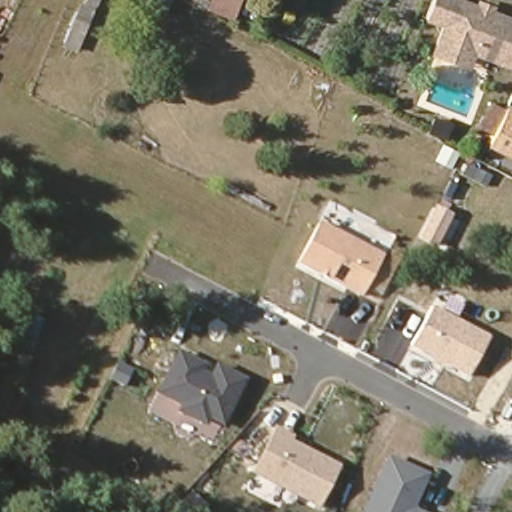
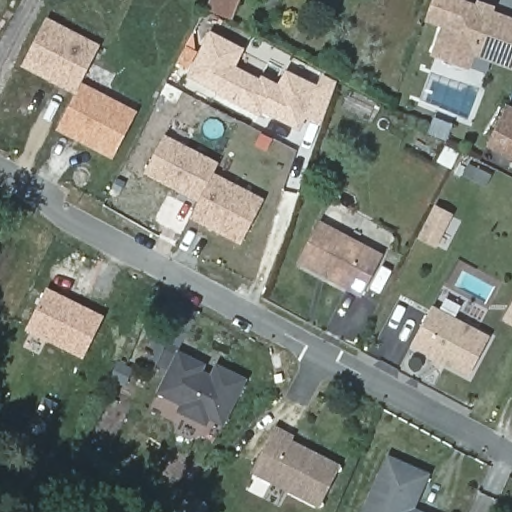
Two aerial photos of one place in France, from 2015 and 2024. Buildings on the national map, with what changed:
demolished [(78,55),(65,49),(84,0),(100,0),(78,55)]
demolished [(131,0),(173,0),(165,15),(130,1),(131,0)]
unchanged [(213,0),(241,0),(235,20),(210,10),(213,0)]
unchanged [(455,59),(435,51),(445,23),(426,16),(432,0),(462,0),(512,18),(512,65),(474,51),(469,64),(455,59)]
new [(101,46),(79,90),(27,65),(49,20),(101,46)]
new [(301,126),(265,108),(262,112),(220,90),(221,89),(191,73),(213,30),(244,47),(235,65),(262,79),(264,75),(280,85),(288,70),(319,86),(301,126)]
new [(324,70),(338,77),(325,114),(310,107),(319,86),(324,70)]
new [(136,111),(115,154),(61,126),(82,84),(136,111)]
unchanged [(512,114),(512,167),(488,155),(509,112),(512,114)]
new [(147,173),(166,136),(220,164),(201,200),(147,173)]
new [(190,220),(201,200),(215,175),(264,200),(240,245),(190,220)]
new [(438,210),(453,217),(438,246),(423,240),(438,210)]
unchanged [(361,296),(297,263),(319,220),(384,253),(361,296)]
new [(84,360),(25,330),(46,287),(105,315),(84,360)]
unchanged [(470,377),(410,345),(432,303),(491,335),(470,377)]
unchanged [(225,428),(209,420),(206,427),(177,413),(180,404),(158,393),(178,350),(208,363),(205,371),(211,374),(216,363),(248,378),(225,428)]
unchanged [(292,440),(340,465),(318,506),(250,473),(274,424),(295,434),(292,440)]
unchanged [(432,474),(417,507),(426,512),(365,512),(389,453),(432,474)]

